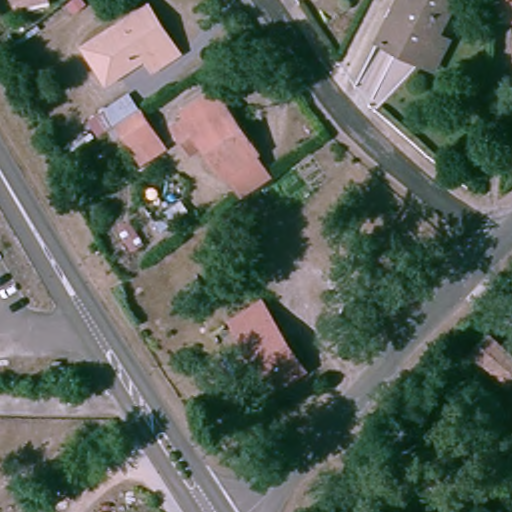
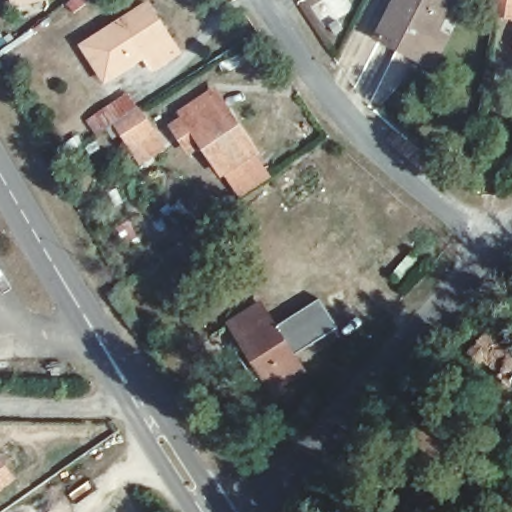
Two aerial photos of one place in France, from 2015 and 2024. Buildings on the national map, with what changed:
unchanged [(397,50),(376,40),(396,0),(452,0),(433,35),(448,41),(433,70),(397,50)]
unchanged [(507,0),(512,0),(512,24),(504,23),(507,0)]
unchanged [(153,74),(144,60),(105,81),(85,43),(115,30),(150,10),(172,43),(181,59),(153,74)]
unchanged [(255,146),(218,171),(198,136),(183,146),(166,119),(181,110),(216,86),(255,146)]
unchanged [(117,134),(111,139),(96,117),(129,97),(168,150),(140,168),(117,134)]
unchanged [(218,171),(255,146),(272,173),(236,197),(218,171)]
new [(339,330),(296,356),(279,326),(319,301),(339,330)]
unchanged [(265,302),(306,375),(275,397),(264,380),(272,375),(257,351),(250,355),(230,322),(265,302)]
unchanged [(512,385),(507,389),(470,355),(486,340),(512,363),(512,385)]
new [(18,479),(0,492),(0,455),(18,479)]

